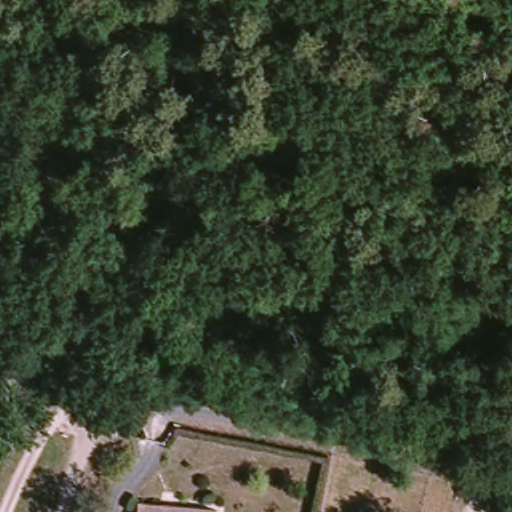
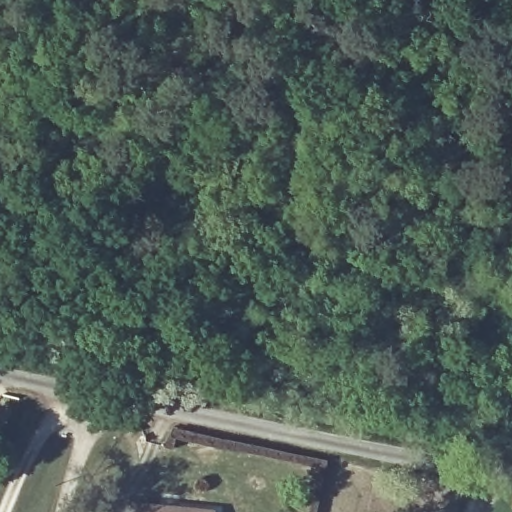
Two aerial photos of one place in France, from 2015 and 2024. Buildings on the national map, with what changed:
unchanged [(176,512),(135,512),(135,508),(176,512)]

